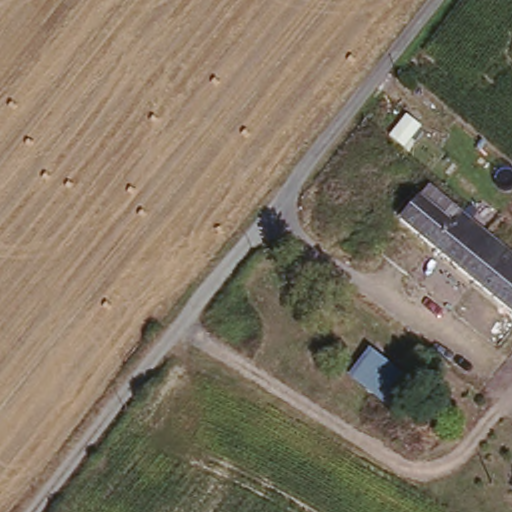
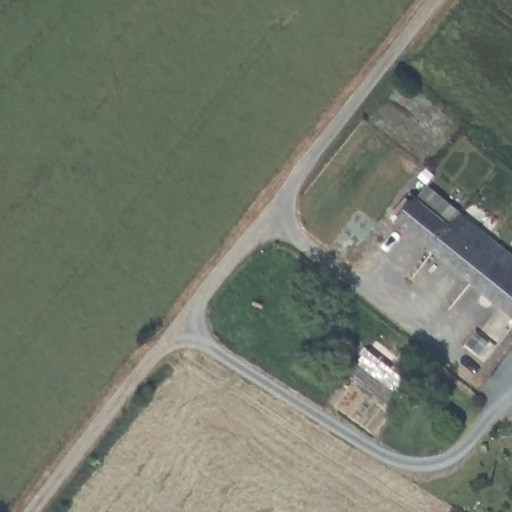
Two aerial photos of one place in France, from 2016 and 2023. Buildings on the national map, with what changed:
unchanged [(416,199),(426,186),(471,221),(512,258),(512,318),(399,220),(416,199)]
unchanged [(412,386),(394,415),(347,381),(365,353),(412,386)]

